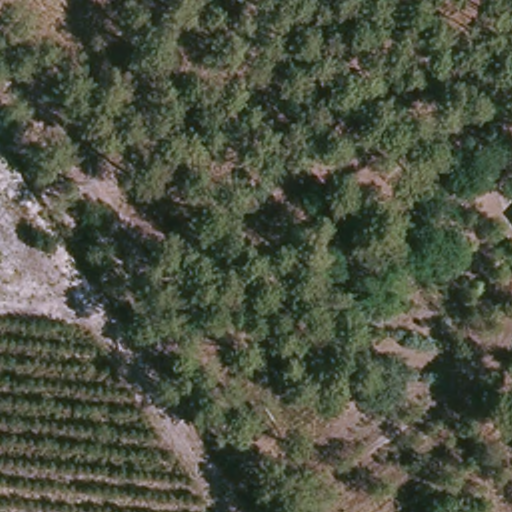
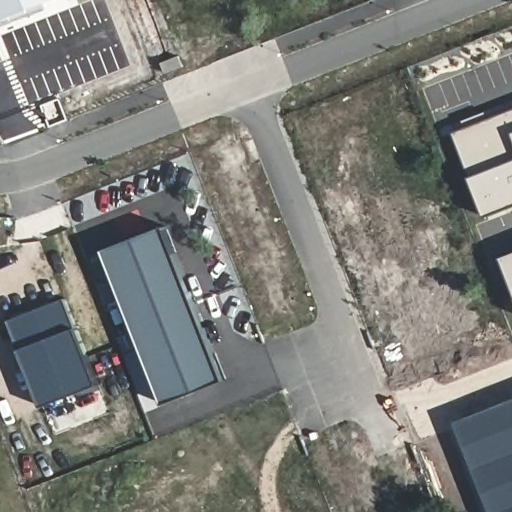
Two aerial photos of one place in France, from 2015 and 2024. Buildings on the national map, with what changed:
new [(0,22),(0,0),(56,0),(0,22)]
new [(495,210),(461,125),(512,105),(512,203),(495,210)]
new [(231,377),(168,401),(107,247),(171,222),(231,377)]
new [(510,250),(512,249),(512,255),(510,250)]
new [(104,381),(47,404),(13,316),(70,294),(104,381)]
new [(491,512),(456,421),(512,400),(512,512),(491,512)]

